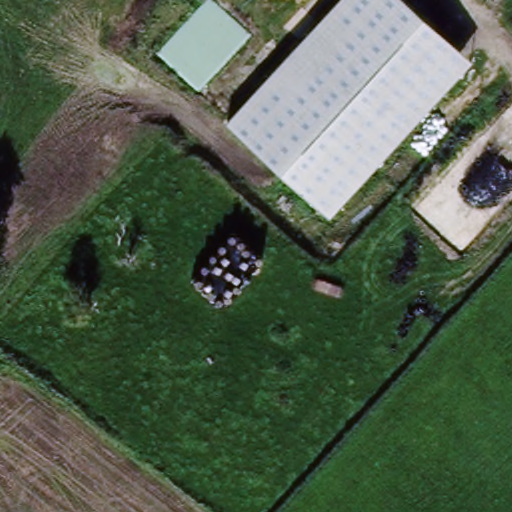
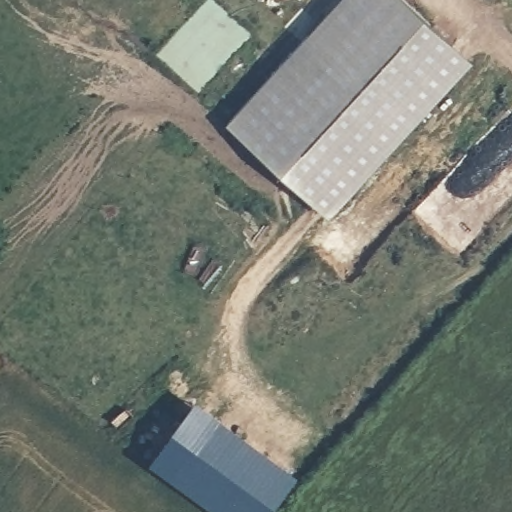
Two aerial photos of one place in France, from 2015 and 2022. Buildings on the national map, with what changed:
unchanged [(473,62),(328,217),(227,123),(339,0),(404,0),(473,62)]
new [(270,512),(221,512),(175,478),(220,415),(298,473),(270,512)]

